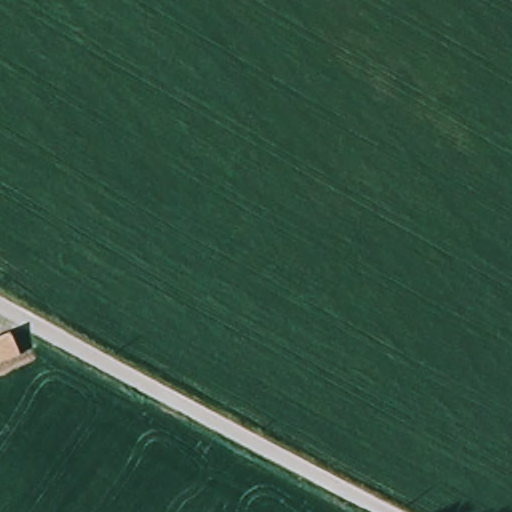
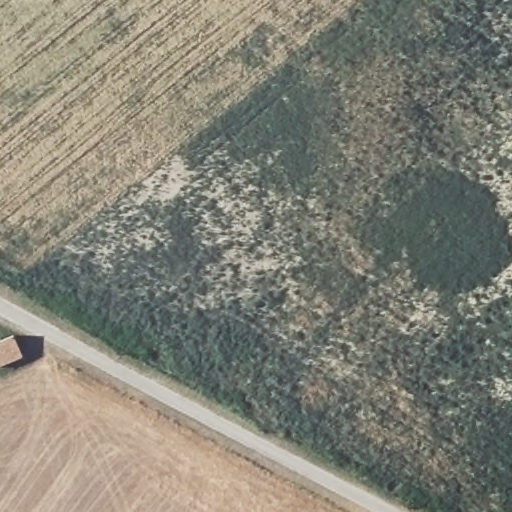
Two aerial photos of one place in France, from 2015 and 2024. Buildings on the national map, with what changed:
unchanged [(0,364),(0,344),(14,339),(21,356),(0,364)]

